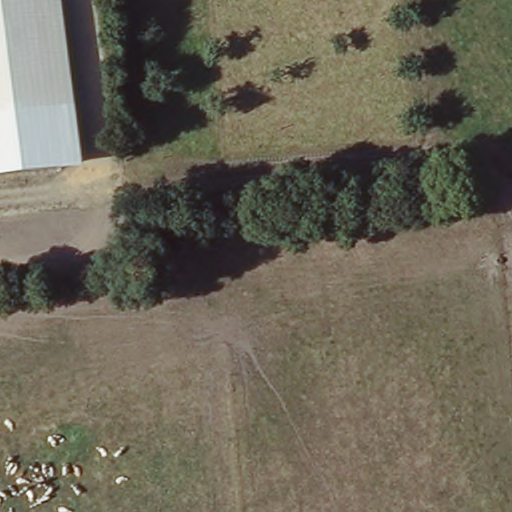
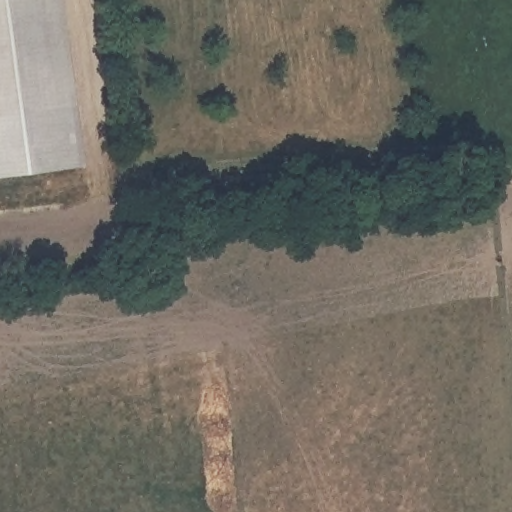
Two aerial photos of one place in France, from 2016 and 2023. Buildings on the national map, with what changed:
unchanged [(0,177),(0,0),(61,0),(83,166),(0,177)]

